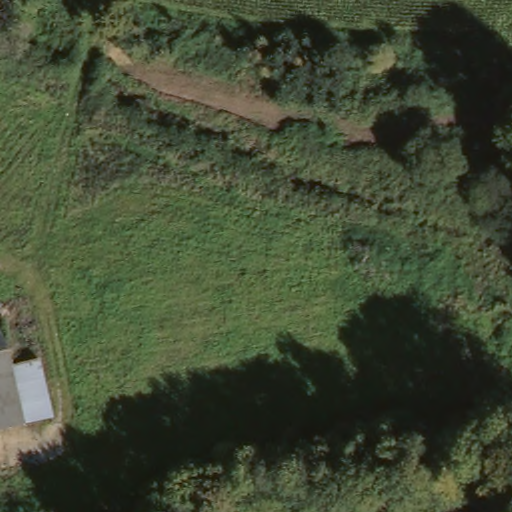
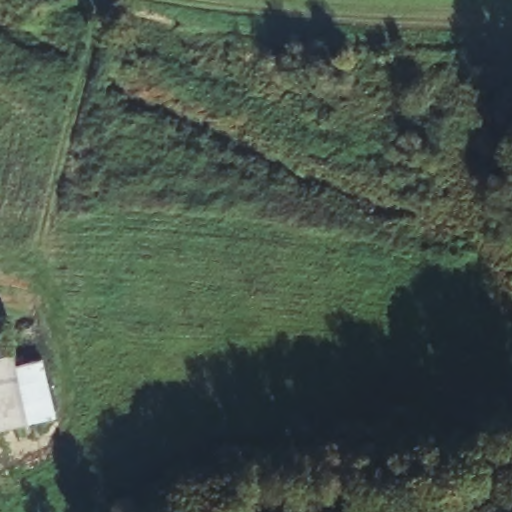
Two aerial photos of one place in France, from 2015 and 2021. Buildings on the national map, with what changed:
unchanged [(12,322),(22,366),(50,360),(60,402),(63,417),(0,432),(0,325),(12,322)]

